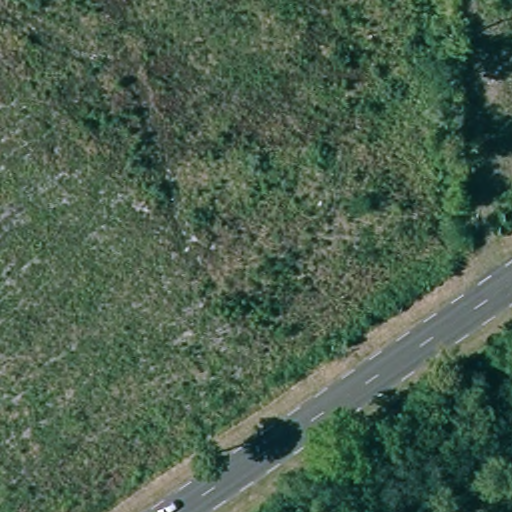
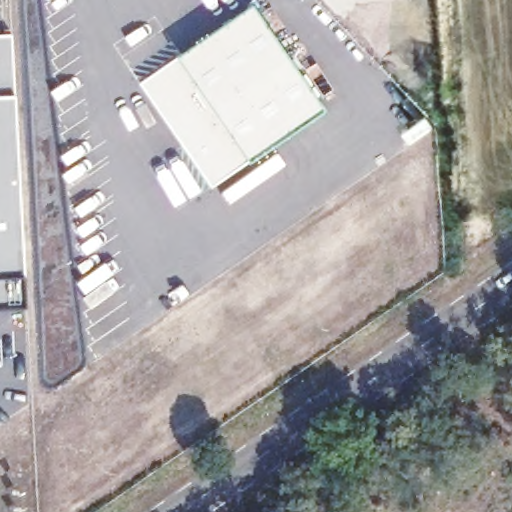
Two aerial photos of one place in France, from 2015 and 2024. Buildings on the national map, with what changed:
new [(175,55),(251,3),(323,108),(250,161),(211,187),(139,81),(175,55)]
new [(11,32),(15,94),(26,309),(0,310),(0,33),(11,32)]

